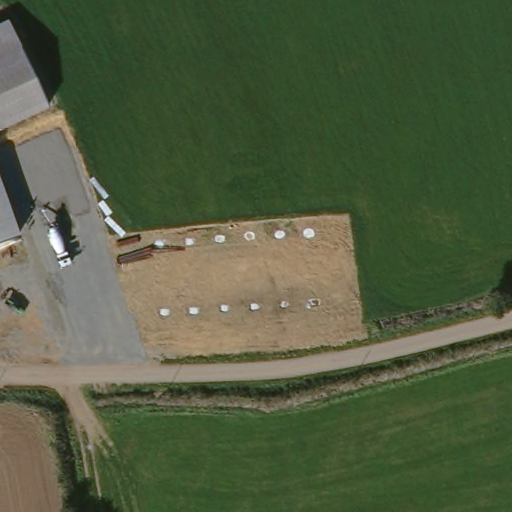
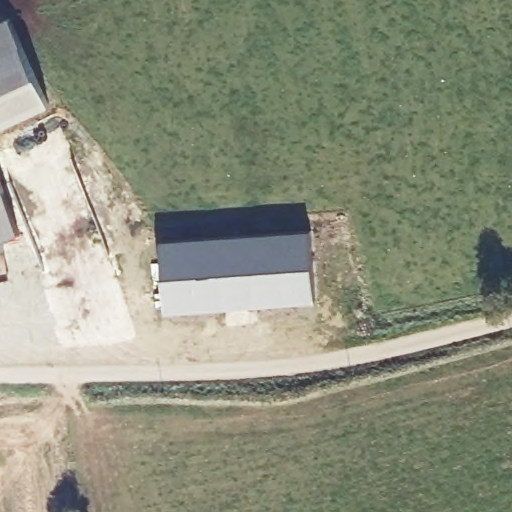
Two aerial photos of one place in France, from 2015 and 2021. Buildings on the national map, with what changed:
unchanged [(23,46),(50,105),(0,129),(0,57),(23,46)]
unchanged [(20,234),(0,241),(0,178),(20,234)]
new [(320,238),(321,308),(171,311),(169,241),(320,238)]

